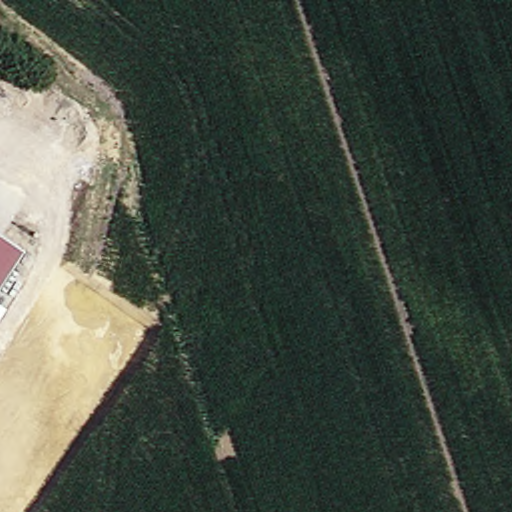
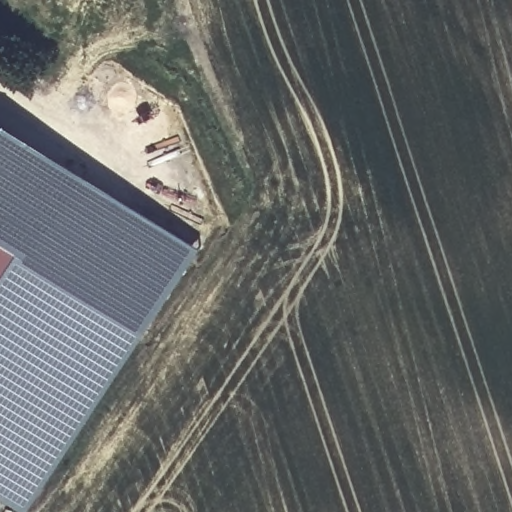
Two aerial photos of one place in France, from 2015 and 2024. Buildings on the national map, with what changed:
new [(26,253),(0,236),(0,116),(201,248),(146,332),(26,253)]
new [(26,253),(0,294),(0,236),(26,253)]
new [(26,253),(146,332),(26,512),(24,512),(0,496),(0,294),(26,253)]

